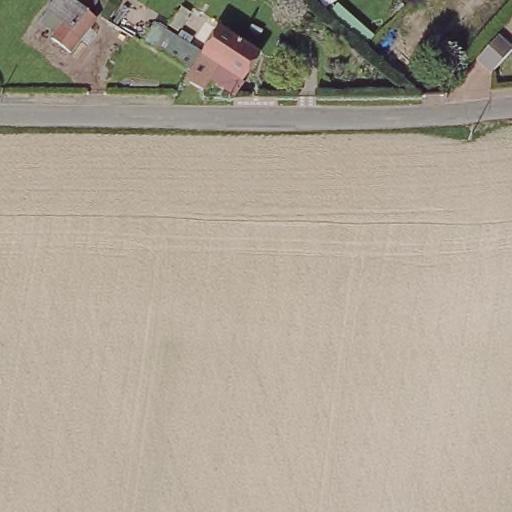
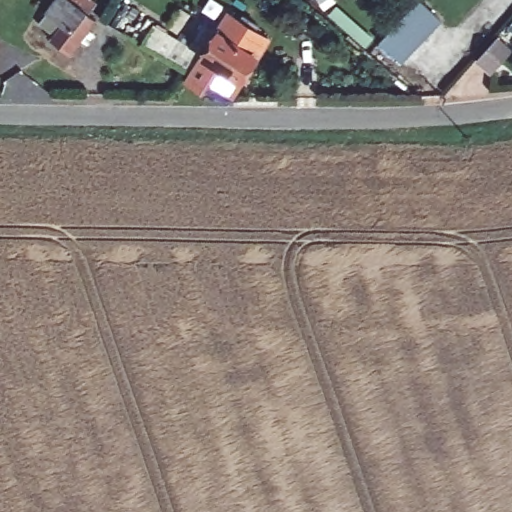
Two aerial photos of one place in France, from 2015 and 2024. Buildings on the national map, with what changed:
unchanged [(52,41),(62,27),(46,13),(57,0),(65,0),(83,12),(96,24),(72,57),(52,41)]
new [(415,5),(437,26),(398,66),(377,45),(415,5)]
unchanged [(196,71),(150,37),(162,20),(208,54),(196,71)]
unchanged [(208,54),(224,33),(262,60),(245,84),(238,79),(229,92),(213,82),(209,90),(192,77),(196,71),(208,54)]
unchanged [(512,43),(512,57),(498,72),(482,58),(504,35),(512,43)]

